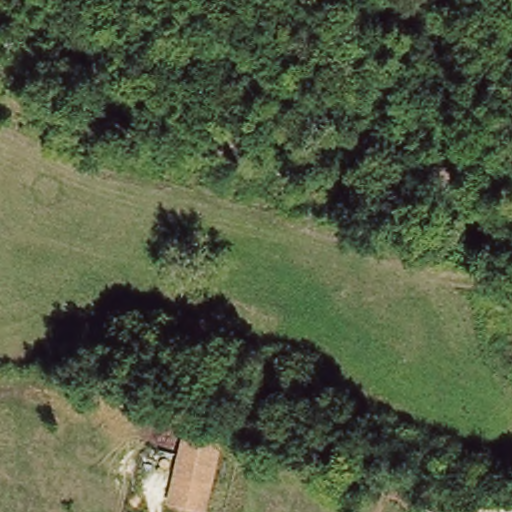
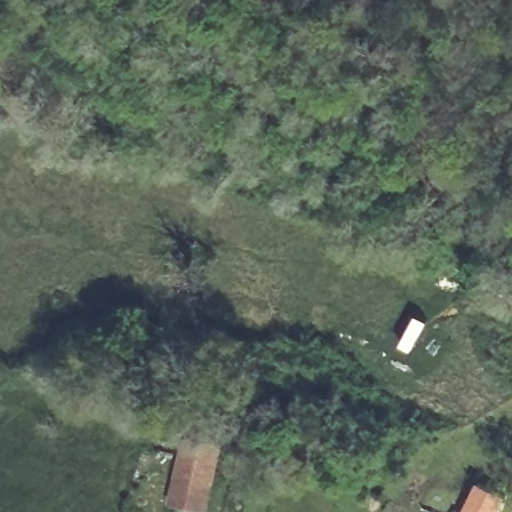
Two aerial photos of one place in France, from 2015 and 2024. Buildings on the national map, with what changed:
unchanged [(220,445),(201,511),(168,501),(187,435),(220,445)]
new [(506,497),(499,512),(464,512),(478,484),(506,497)]

